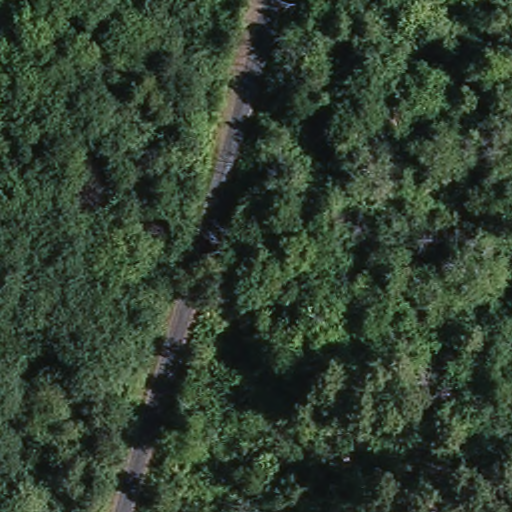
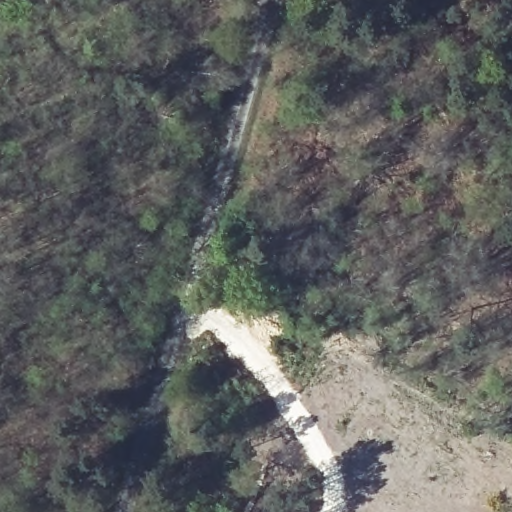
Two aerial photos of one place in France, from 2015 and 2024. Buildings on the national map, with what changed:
[]

